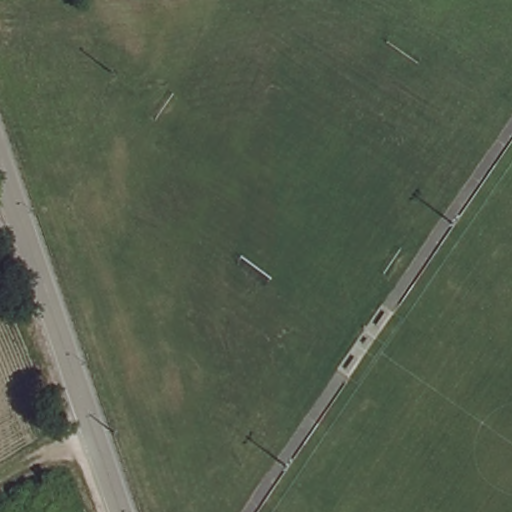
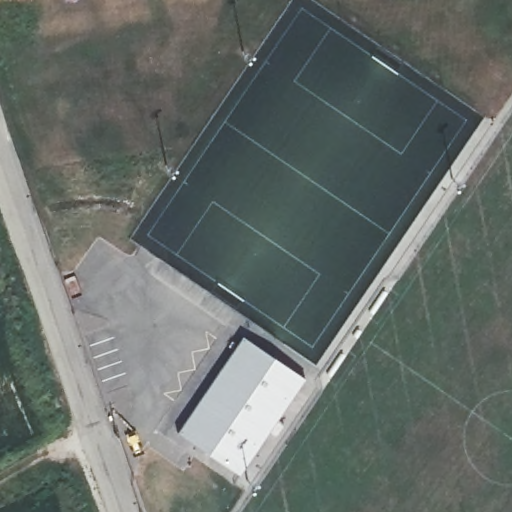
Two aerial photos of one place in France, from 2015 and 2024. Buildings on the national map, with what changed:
new [(305,378),(238,473),(175,432),(241,336),(305,378)]

